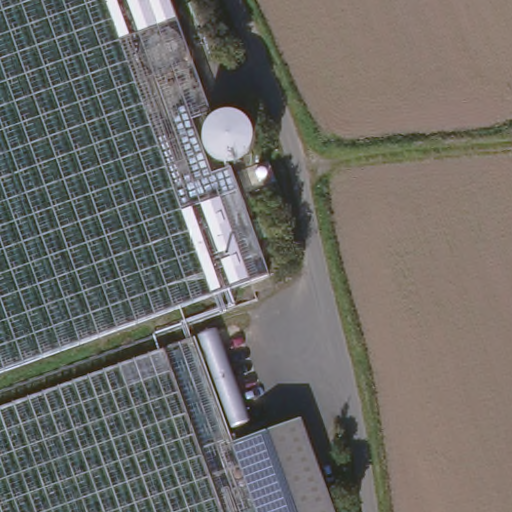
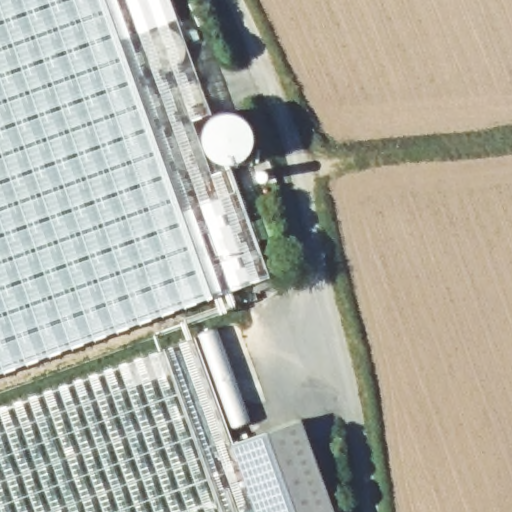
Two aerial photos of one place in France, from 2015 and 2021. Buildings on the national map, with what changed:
unchanged [(0,0),(169,0),(212,116),(193,124),(211,173),(231,165),(270,277),(0,373),(0,0)]
unchanged [(0,408),(233,323),(265,405),(245,412),(254,438),(229,446),(254,512),(0,512),(0,408)]
unchanged [(298,421),(331,512),(254,512),(229,446),(254,438),(298,421)]

